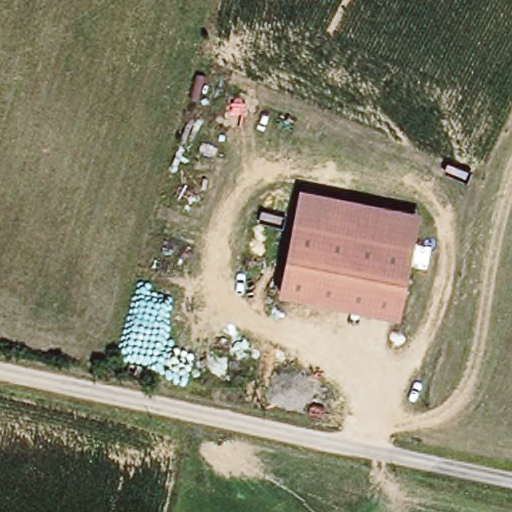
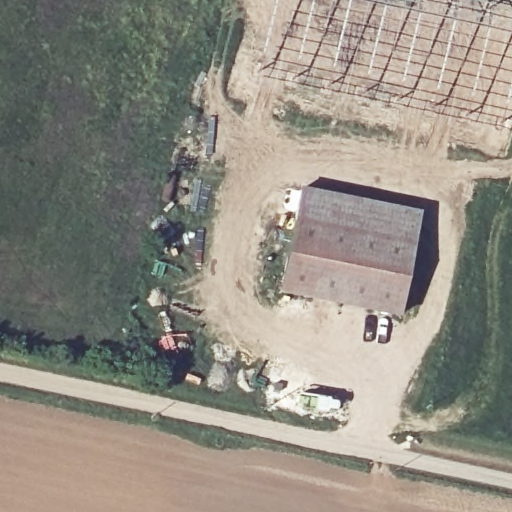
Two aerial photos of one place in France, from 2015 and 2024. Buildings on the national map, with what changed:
unchanged [(297,218),(302,187),(422,212),(417,244),(297,218)]
unchanged [(417,244),(400,315),(281,290),(297,218),(417,244)]

